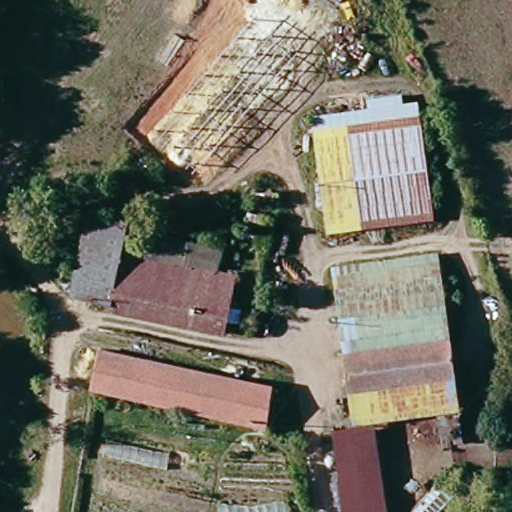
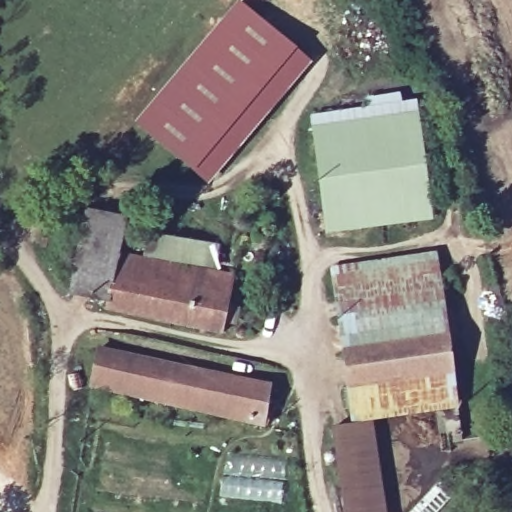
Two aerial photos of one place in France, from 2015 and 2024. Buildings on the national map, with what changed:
new [(133,124),(236,3),(309,64),(207,185),(133,124)]
unchanged [(420,118),(424,220),(324,225),(319,122),(420,118)]
unchanged [(127,219),(118,259),(148,264),(152,236),(222,247),(219,272),(238,276),(226,337),(105,317),(107,305),(69,296),(88,212),(127,219)]
unchanged [(339,267),(375,266),(439,264),(444,341),(445,373),(423,374),(423,409),(346,410),(344,365),(339,267)]
unchanged [(275,387),(265,428),(93,393),(102,351),(275,387)]
unchanged [(448,443),(438,443),(438,430),(423,431),(423,409),(423,374),(445,373),(448,443)]
unchanged [(387,512),(343,512),(332,431),(353,427),(374,424),(387,512)]
unchanged [(434,491),(449,509),(445,512),(415,512),(434,491)]

